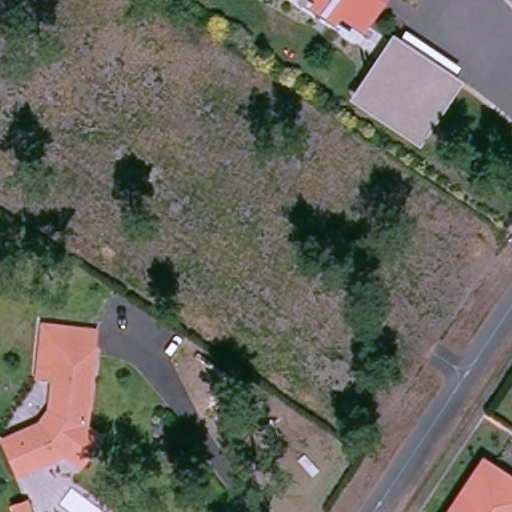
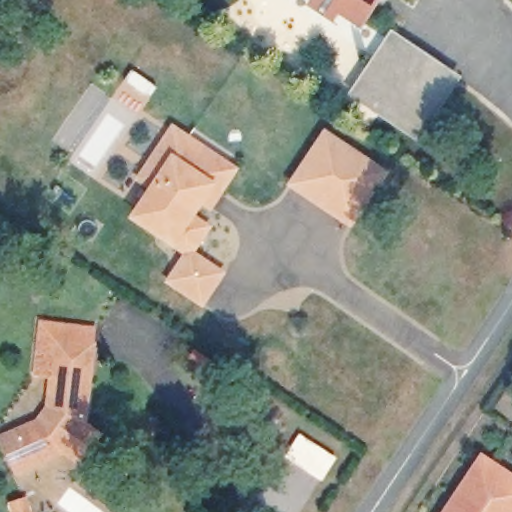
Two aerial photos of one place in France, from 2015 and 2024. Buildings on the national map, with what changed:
unchanged [(356,15),(335,0),(328,11),(312,0),(366,0),(356,15)]
unchanged [(453,77),(417,130),(357,90),(394,36),(453,77)]
new [(322,127),(378,168),(344,217),(287,176),(322,127)]
new [(143,176),(161,154),(180,129),(192,139),(236,169),(220,191),(210,205),(202,199),(191,214),(207,226),(190,251),(189,252),(150,224),(136,215),(146,200),(157,185),(143,176)]
new [(189,252),(190,251),(221,273),(201,301),(170,279),(189,252)]
unchanged [(76,466),(60,455),(13,472),(0,436),(37,422),(50,406),(51,376),(34,375),(36,322),(91,325),(87,418),(102,430),(76,466)]
unchanged [(512,472),(512,512),(446,512),(486,455),(512,472)]
new [(32,512),(10,512),(7,502),(27,496),(32,512)]

